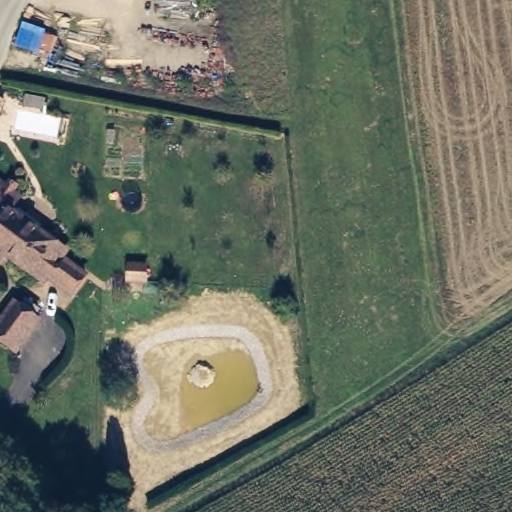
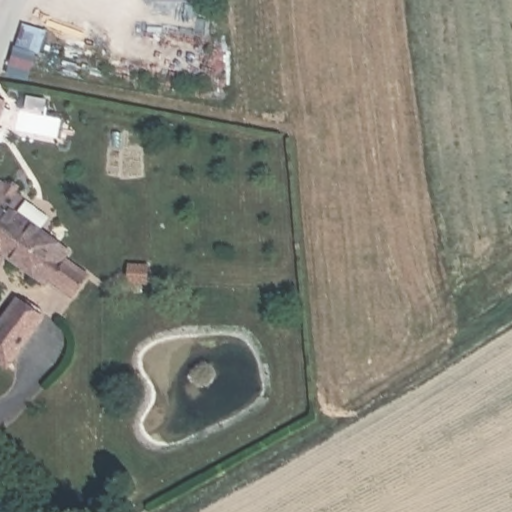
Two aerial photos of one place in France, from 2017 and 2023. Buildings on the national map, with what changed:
unchanged [(66,247),(46,277),(7,251),(0,260),(0,198),(66,247)]
unchanged [(36,328),(13,360),(0,350),(0,325),(11,309),(36,328)]

